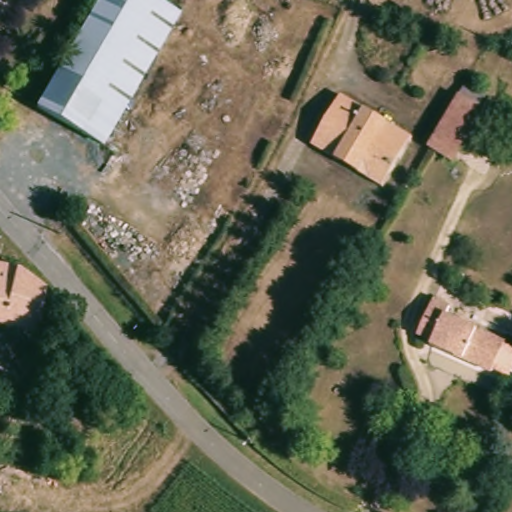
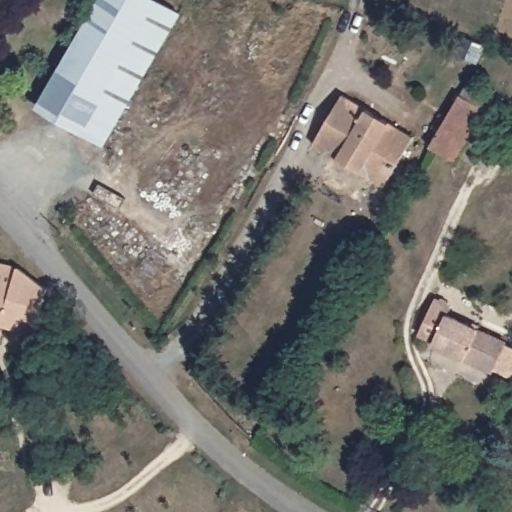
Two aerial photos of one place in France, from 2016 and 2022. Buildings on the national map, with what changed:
unchanged [(167,31),(162,41),(160,46),(160,47),(157,50),(155,54),(145,74),(145,75),(144,76),(137,86),(137,87),(131,96),(106,137),(106,139),(42,106),(97,0),(161,0),(179,9),(167,31)]
unchanged [(467,84),(489,99),(482,111),(486,112),(456,163),(430,147),(467,84)]
unchanged [(380,188),(308,145),(338,98),(408,140),(380,188)]
unchanged [(22,266),(39,283),(45,290),(35,335),(0,327),(0,260),(22,266)]
unchanged [(494,367),(491,375),(430,347),(432,343),(418,337),(433,303),(447,309),(444,318),(503,345),(512,349),(512,354),(503,372),(494,367)]

